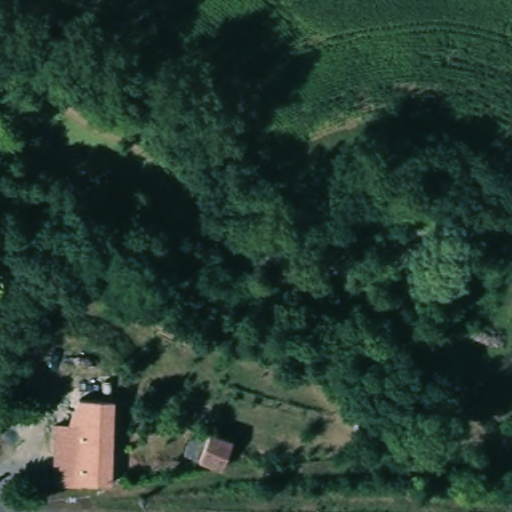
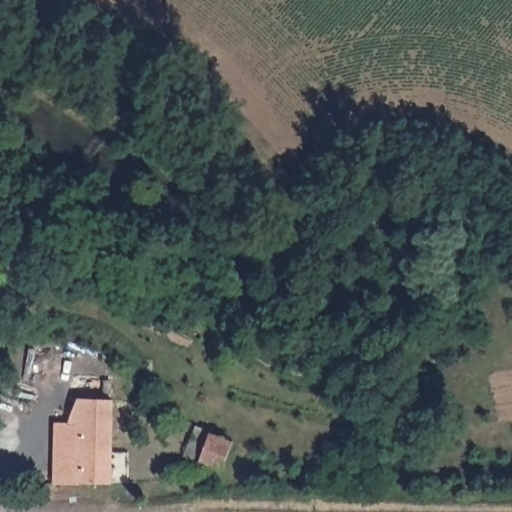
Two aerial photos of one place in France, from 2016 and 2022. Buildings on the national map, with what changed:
unchanged [(67,418),(72,405),(76,406),(86,407),(90,395),(101,396),(111,397),(112,482),(52,480),(53,420),(67,418)]
unchanged [(186,437),(237,453),(232,465),(181,447),(186,437)]

